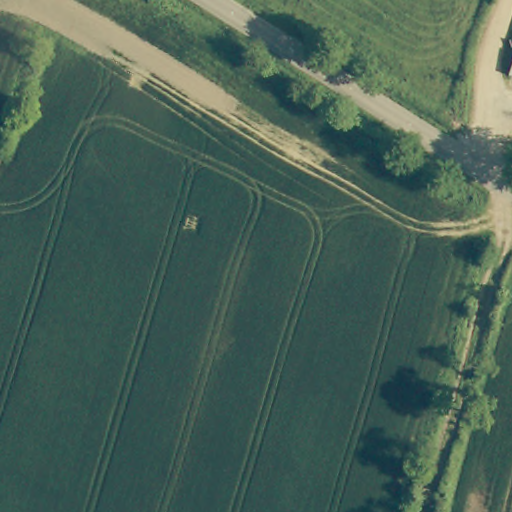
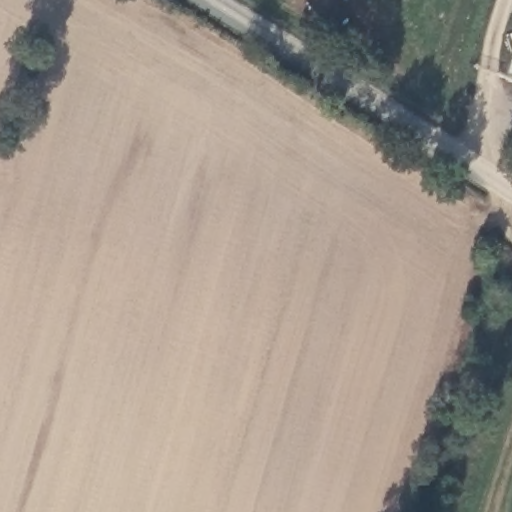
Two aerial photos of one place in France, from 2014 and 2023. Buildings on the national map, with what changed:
unchanged [(508,74),(512,61),(512,75),(508,74)]

